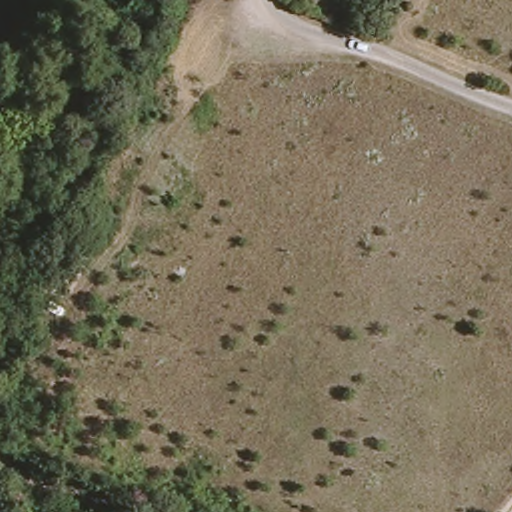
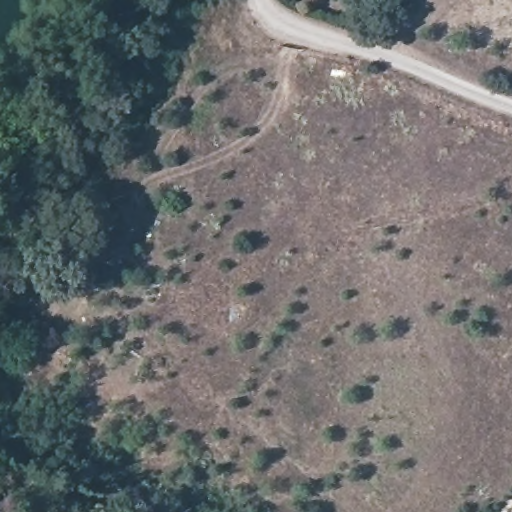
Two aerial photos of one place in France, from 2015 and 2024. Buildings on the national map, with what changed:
unchanged [(67,296),(50,288),(60,267),(77,276),(67,296)]

